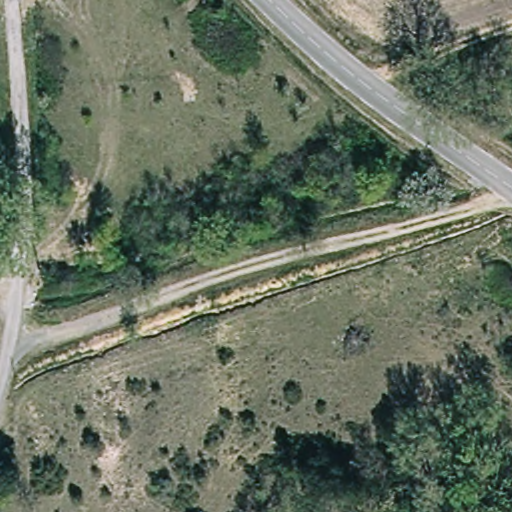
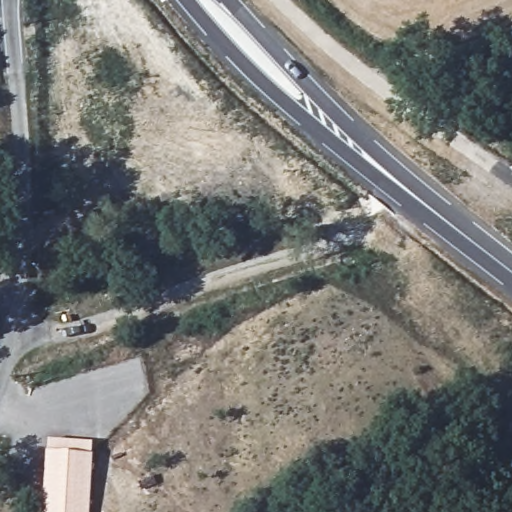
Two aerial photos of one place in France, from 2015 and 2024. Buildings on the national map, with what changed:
new [(48,451),(50,439),(92,442),(92,453),(93,453),(90,512),(43,512),(47,451),(48,451)]

